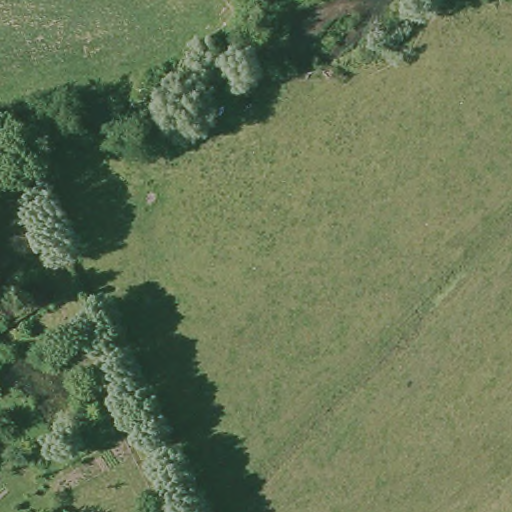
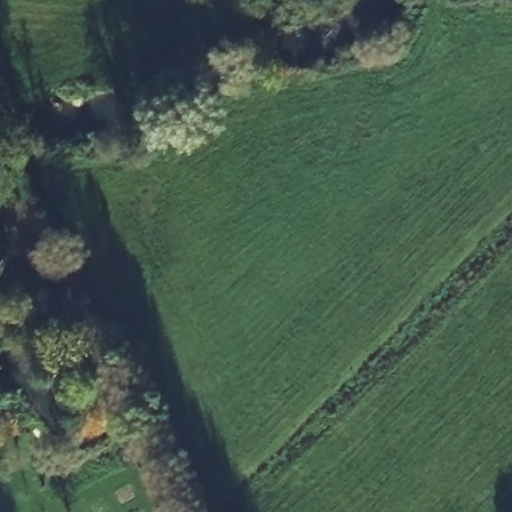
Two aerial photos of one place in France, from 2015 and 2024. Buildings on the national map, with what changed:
unchanged [(0,258),(7,261),(0,273),(0,258)]

